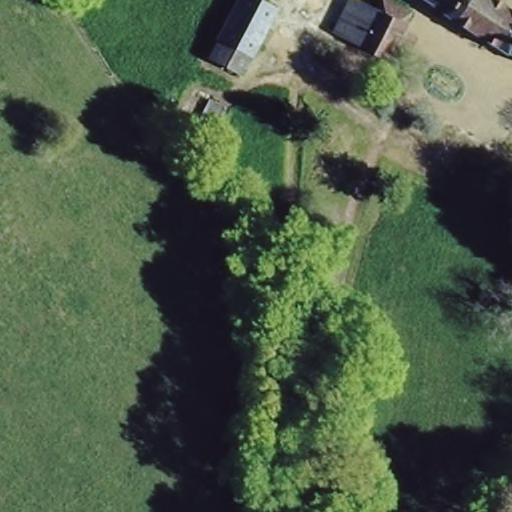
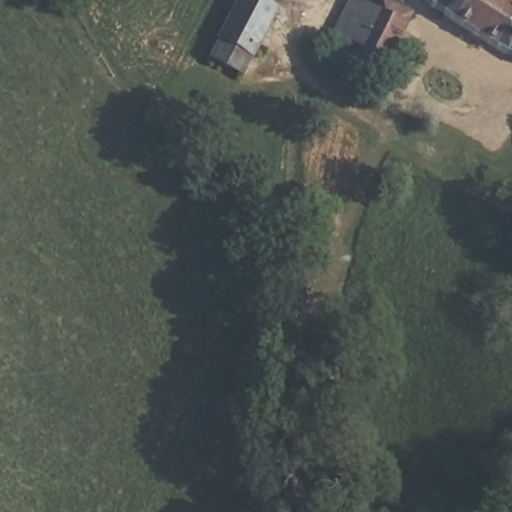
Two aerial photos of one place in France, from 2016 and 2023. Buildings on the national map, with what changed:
unchanged [(237,75),(204,54),(237,0),(260,0),(279,12),(237,75)]
unchanged [(335,24),(351,0),(365,0),(371,4),(373,0),(391,0),(410,14),(381,55),(349,34),(335,24)]
unchanged [(500,51),(495,59),(437,19),(445,8),(433,0),(507,0),(512,4),(512,60),(500,51)]

